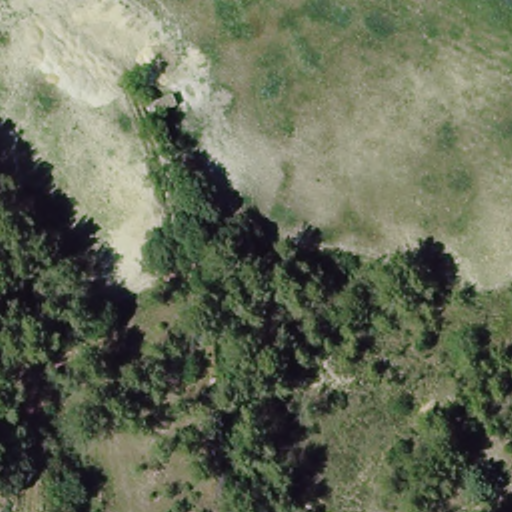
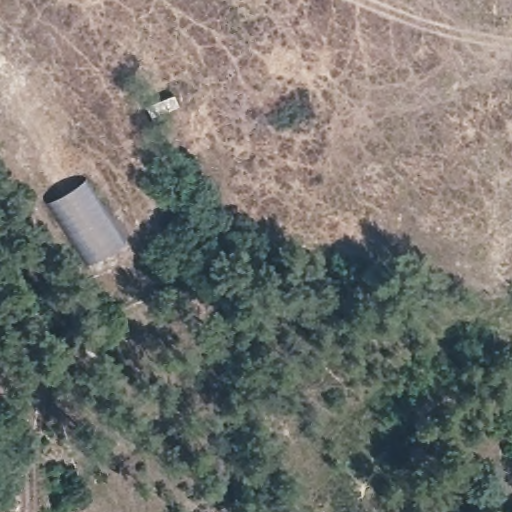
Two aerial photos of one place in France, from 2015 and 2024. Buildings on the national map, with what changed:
new [(125,243),(88,265),(46,202),(82,180),(125,243)]
new [(52,331),(41,338),(28,318),(39,311),(52,331)]

